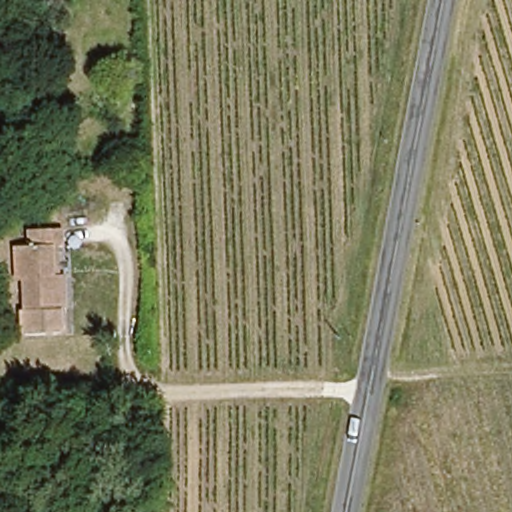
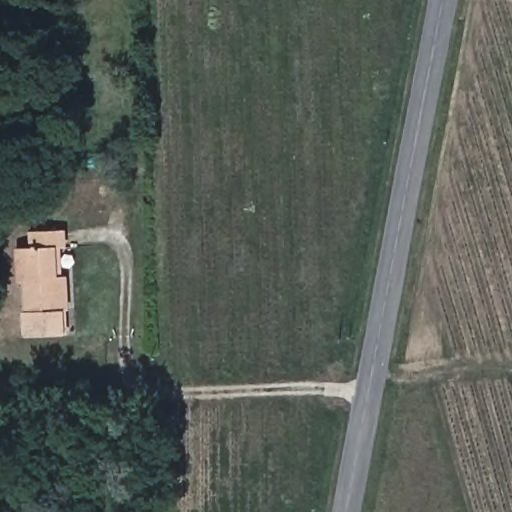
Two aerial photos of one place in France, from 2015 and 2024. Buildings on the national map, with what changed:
unchanged [(30,333),(30,330),(30,313),(29,280),(26,249),(40,249),(40,231),(61,231),(71,231),(71,249),(73,279),(75,314),(75,332),(63,333),(30,333)]

